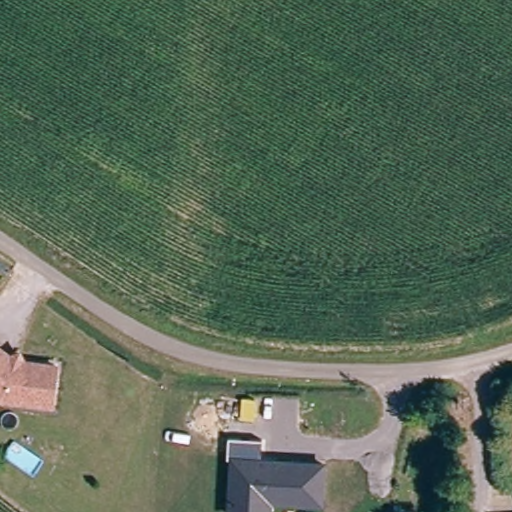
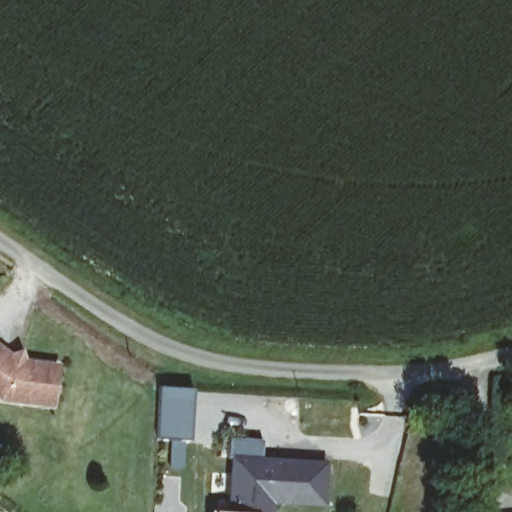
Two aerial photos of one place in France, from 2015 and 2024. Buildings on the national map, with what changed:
unchanged [(60,362),(58,401),(6,399),(0,395),(0,347),(19,360),(60,362)]
new [(193,389),(192,440),(159,437),(161,389),(193,389)]
unchanged [(227,512),(230,439),(261,441),(261,457),(327,461),(325,505),(274,504),(274,512),(227,512)]
new [(227,512),(209,512),(209,511),(227,512)]

